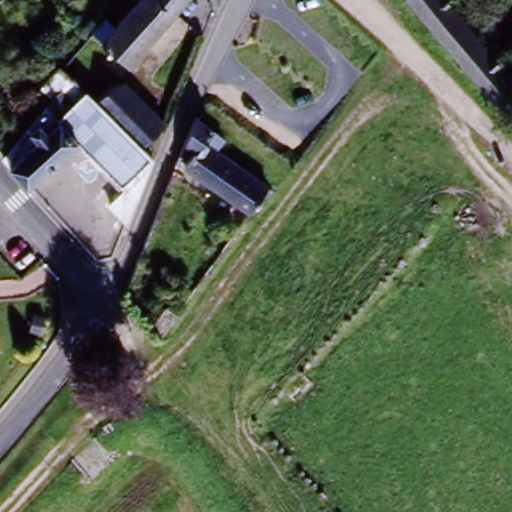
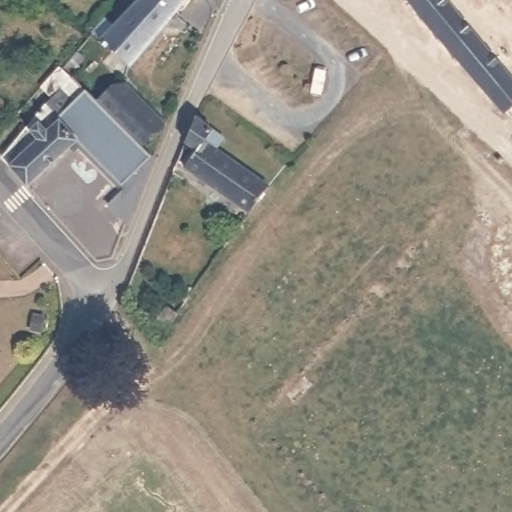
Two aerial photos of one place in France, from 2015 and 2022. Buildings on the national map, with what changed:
unchanged [(95,35),(110,14),(126,25),(144,0),(180,0),(134,62),(95,35)]
unchanged [(512,86),(512,103),(501,111),(413,0),(447,0),(512,86)]
unchanged [(43,94),(70,68),(89,90),(62,114),(54,105),(43,94)]
unchanged [(101,102),(116,86),(134,89),(160,116),(172,107),(176,113),(175,122),(145,151),(133,139),(125,129),(101,102)]
unchanged [(89,90),(101,102),(125,129),(98,153),(83,136),(62,114),(89,90)]
unchanged [(54,105),(62,114),(83,136),(31,181),(8,150),(54,105)]
unchanged [(255,210),(192,165),(194,157),(182,147),(195,115),(227,136),(221,146),(273,185),(255,210)]
unchanged [(109,210),(131,186),(98,153),(125,129),(133,139),(145,151),(159,167),(143,197),(129,233),(109,210)]
unchanged [(188,315),(169,341),(156,330),(174,305),(188,315)]

